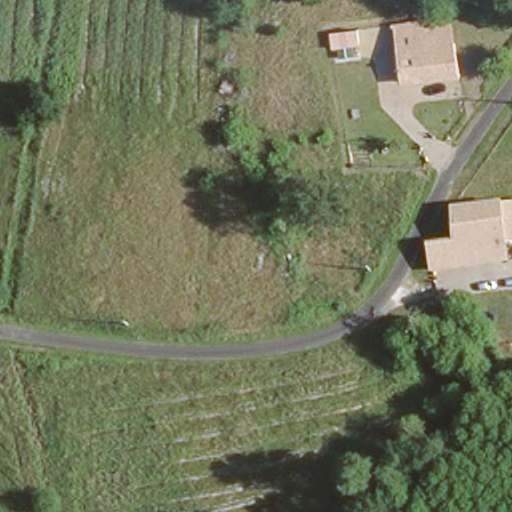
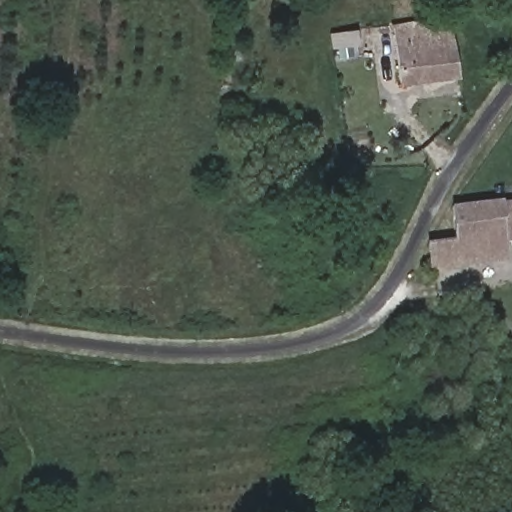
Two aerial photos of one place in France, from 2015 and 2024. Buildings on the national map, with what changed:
unchanged [(462,71),(403,79),(395,18),(422,15),(425,23),(453,19),(462,71)]
unchanged [(512,238),(510,239),(510,236),(460,241),(457,206),(512,202),(512,238)]
unchanged [(433,244),(460,241),(510,236),(510,239),(511,259),(436,268),(433,244)]

